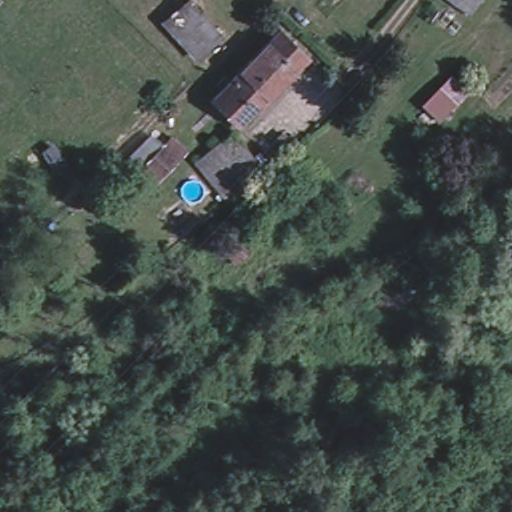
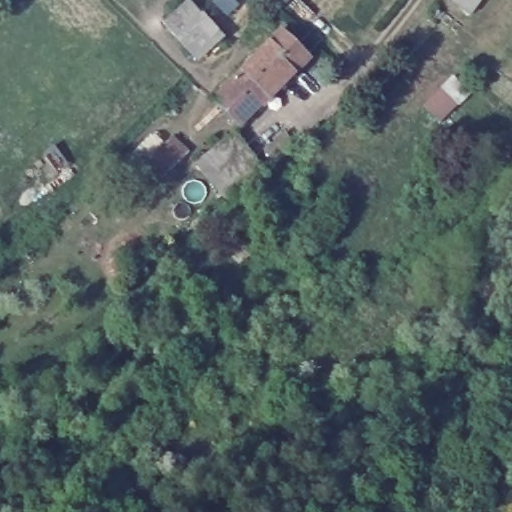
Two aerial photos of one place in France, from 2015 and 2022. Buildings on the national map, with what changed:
unchanged [(190,0),(225,39),(200,61),(160,17),(179,0),(190,0)]
unchanged [(461,0),(482,0),(476,10),(461,0)]
unchanged [(308,60),(262,106),(261,105),(233,78),(279,31),(308,60)]
unchanged [(261,105),(237,128),(210,101),(233,78),(261,105)]
unchanged [(222,202),(192,163),(231,132),(261,166),(266,172),(238,191),(222,202)]

